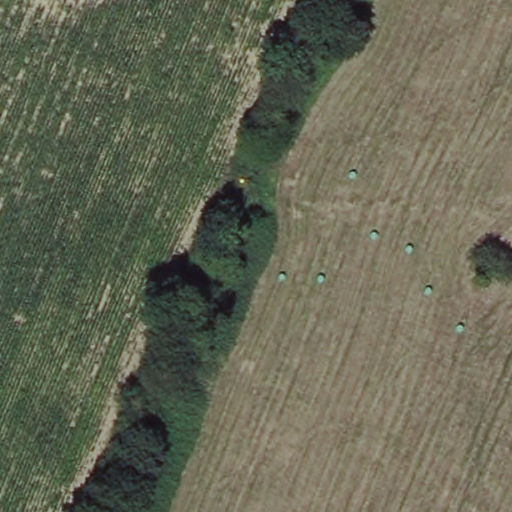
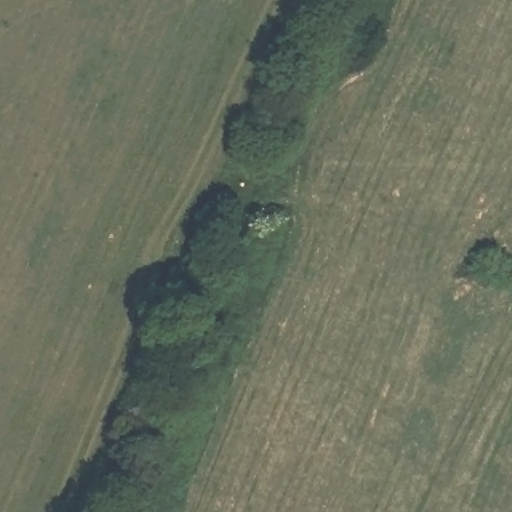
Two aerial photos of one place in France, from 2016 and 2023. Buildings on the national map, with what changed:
[]

